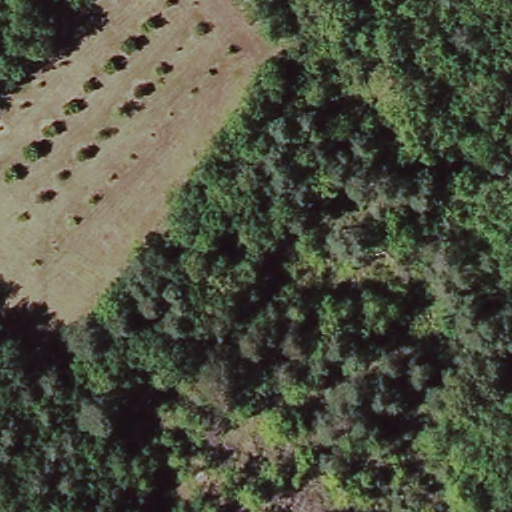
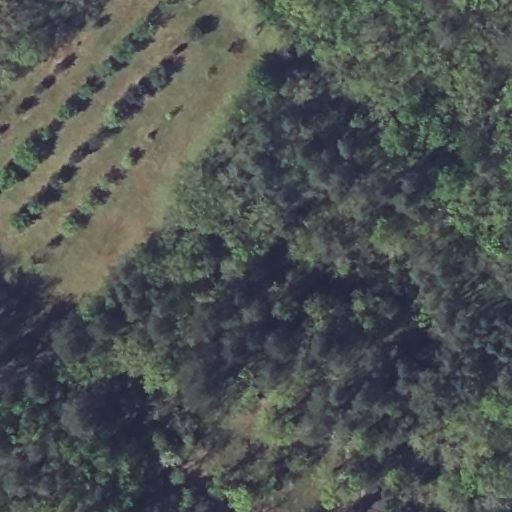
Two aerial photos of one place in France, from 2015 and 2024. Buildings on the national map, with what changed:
[]

